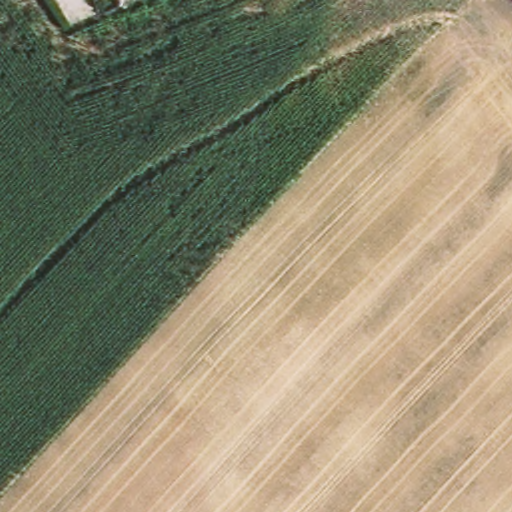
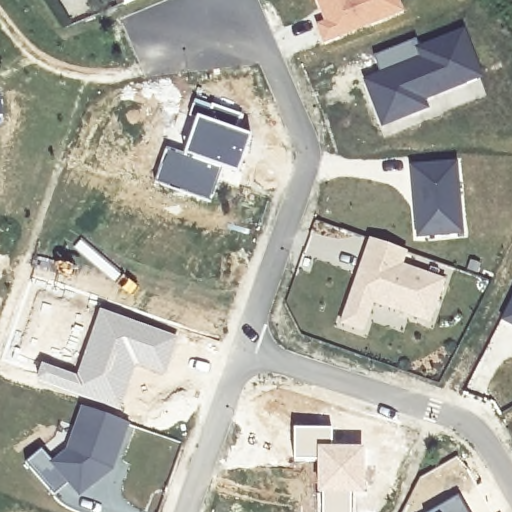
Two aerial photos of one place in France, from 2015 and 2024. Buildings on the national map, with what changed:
new [(404,10),(326,40),(320,24),(329,21),(320,0),(400,0),(404,10)]
new [(376,55),(418,38),(422,48),(464,31),(481,75),(424,97),(427,106),(385,122),(373,92),(368,80),(382,74),(376,55)]
new [(190,114),(197,96),(244,113),(237,130),(251,135),(237,175),(222,169),(182,152),(195,115),(190,114)]
new [(166,146),(182,152),(222,169),(210,203),(153,183),(166,146)]
new [(458,160),(464,234),(416,237),(410,163),(458,160)]
new [(410,311),(377,300),(367,328),(345,321),(375,236),(410,249),(405,263),(447,278),(438,306),(434,320),(410,311)]
new [(512,295),(512,326),(500,320),(512,295)]
new [(41,363),(76,375),(99,308),(177,336),(164,375),(135,365),(120,410),(35,382),(41,363)]
new [(42,448),(51,460),(64,448),(80,405),(130,422),(112,471),(80,497),(74,508),(55,495),(25,462),(42,448)]
new [(292,427),(332,427),(332,446),(317,446),(316,462),(292,462),(292,427)]
new [(316,462),(317,446),(332,446),(364,446),(365,493),(351,493),(351,512),(318,512),(317,495),(316,462)]
new [(471,512),(431,512),(461,495),(471,512)]

